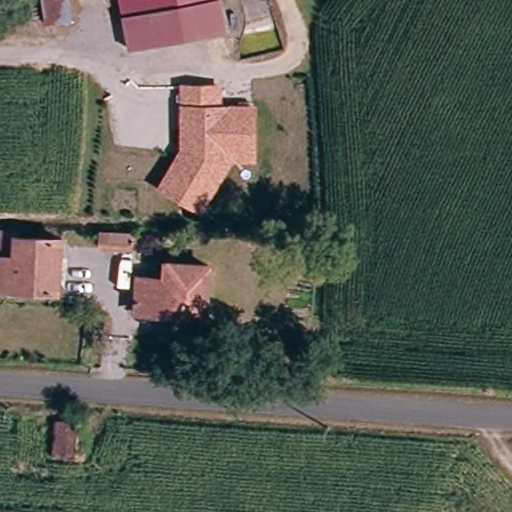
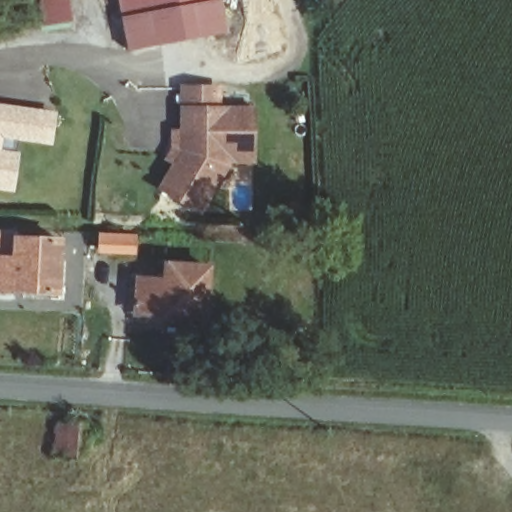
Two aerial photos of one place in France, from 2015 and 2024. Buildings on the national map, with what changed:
unchanged [(49,29),(45,0),(71,0),(75,26),(49,29)]
unchanged [(124,20),(119,0),(200,0),(201,3),(124,20)]
unchanged [(201,3),(200,0),(216,0),(211,1),(201,3)]
unchanged [(211,1),(218,30),(130,50),(124,20),(201,3),(211,1)]
unchanged [(247,130),(247,158),(222,157),(222,161),(195,209),(155,186),(177,149),(177,105),(177,85),(213,85),(212,106),(248,106),(247,130)]
new [(57,111),(52,145),(2,140),(1,150),(20,152),(15,193),(0,191),(0,104),(57,111)]
unchanged [(138,250),(99,247),(100,233),(139,235),(138,250)]
unchanged [(62,237),(59,295),(12,292),(0,291),(0,235),(62,237)]
unchanged [(170,277),(172,261),(212,263),(206,320),(136,317),(138,275),(170,277)]
unchanged [(87,458),(61,455),(50,455),(56,424),(66,425),(89,428),(87,458)]

